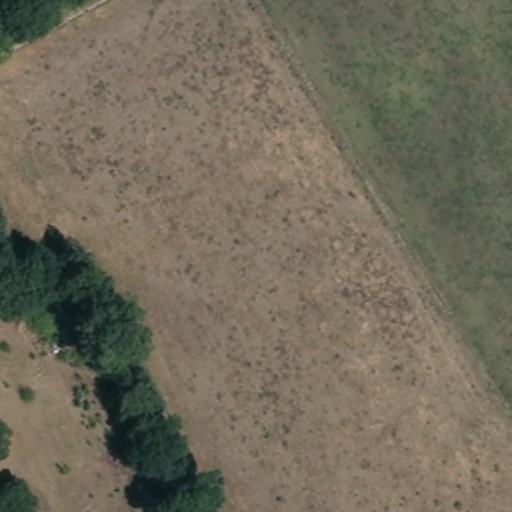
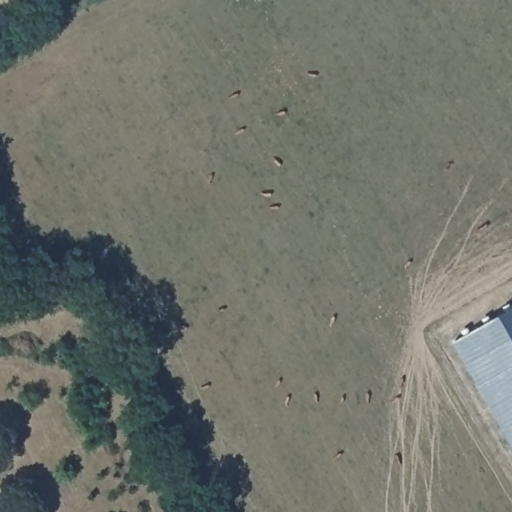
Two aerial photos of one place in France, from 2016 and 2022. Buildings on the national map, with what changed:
new [(512,311),(512,443),(455,343),(512,311)]

